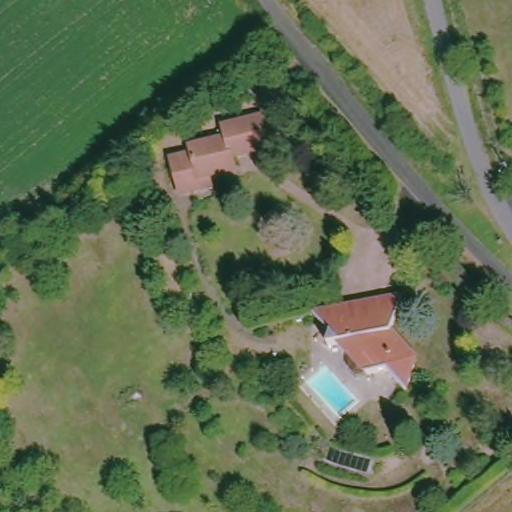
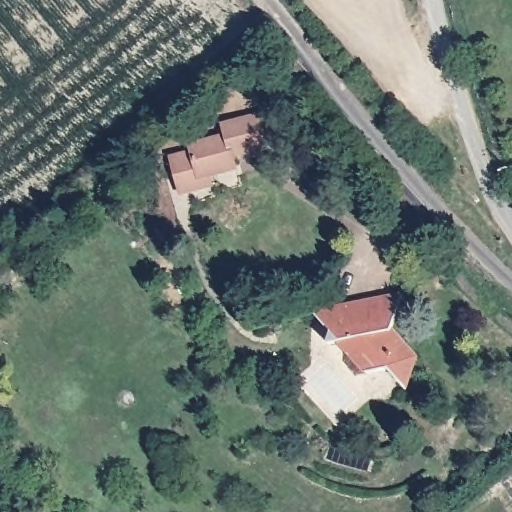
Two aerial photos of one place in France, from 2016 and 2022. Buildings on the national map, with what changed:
unchanged [(186,152),(184,146),(221,136),(218,125),(244,117),(261,112),(269,147),(253,151),(228,157),(231,169),(194,177),(198,189),(174,194),(166,157),(186,152)]
unchanged [(339,307),(404,295),(391,333),(413,360),(404,388),(386,368),(355,375),(347,368),(354,352),(342,340),(326,342),(339,307)]

